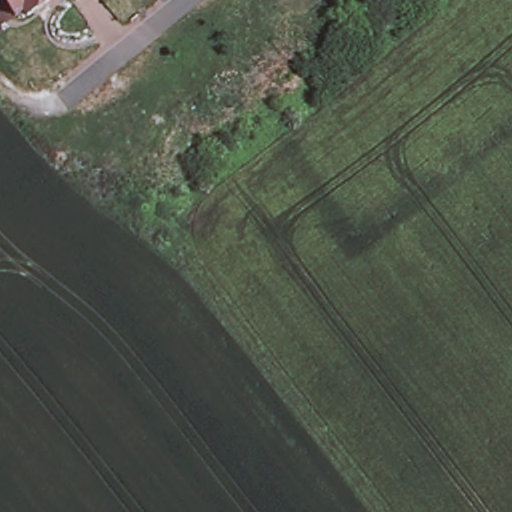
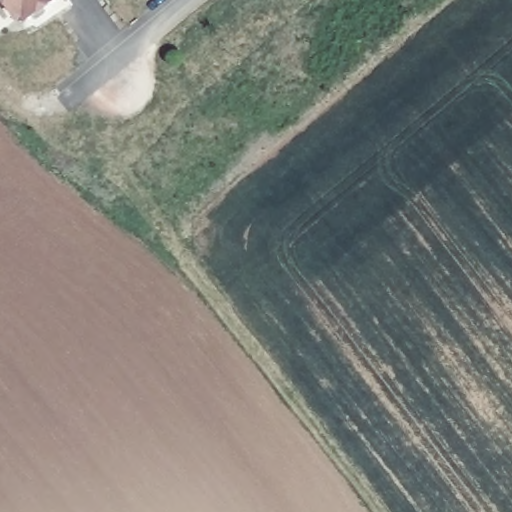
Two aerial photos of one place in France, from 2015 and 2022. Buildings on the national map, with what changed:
unchanged [(57,0),(27,20),(24,15),(16,20),(2,0),(57,0)]

